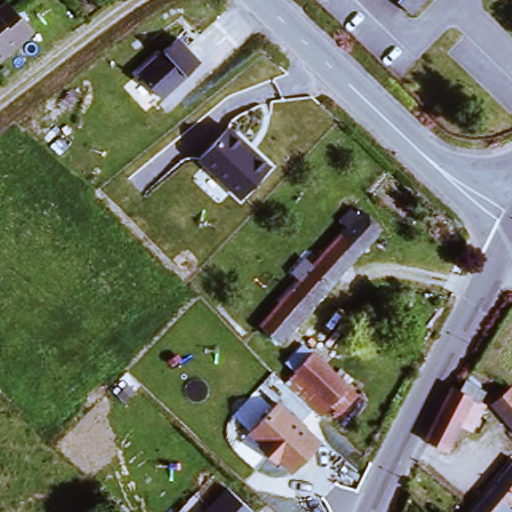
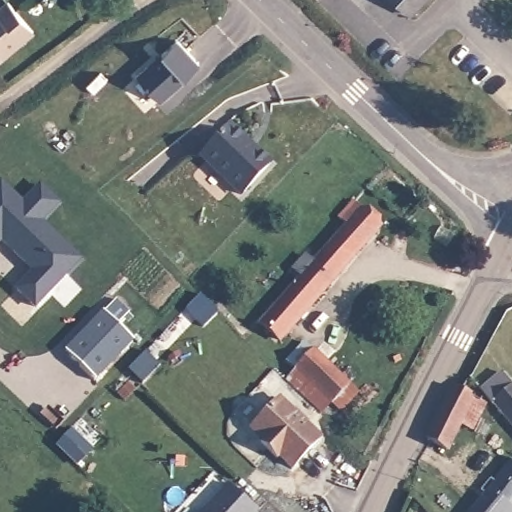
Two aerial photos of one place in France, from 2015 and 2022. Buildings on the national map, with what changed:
unchanged [(407,8),(398,0),(414,0),(407,8)]
unchanged [(35,31),(0,58),(0,11),(12,1),(35,31)]
unchanged [(137,71),(180,30),(204,57),(162,100),(137,71)]
unchanged [(232,130),(271,165),(239,201),(199,161),(232,130)]
new [(22,191),(40,173),(58,191),(40,209),(79,247),(34,293),(15,275),(33,258),(33,250),(28,245),(24,249),(1,225),(0,227),(0,170),(1,170),(22,191)]
unchanged [(355,203),(382,226),(280,338),(264,323),(307,275),(298,267),(309,255),(315,263),(349,226),(341,219),(355,203)]
new [(105,295),(134,323),(95,363),(65,335),(105,295)]
unchanged [(284,360),(302,341),(352,393),(334,411),(284,360)]
unchanged [(469,431),(458,425),(451,441),(430,431),(460,376),(479,387),(470,405),(480,410),(469,431)]
unchanged [(490,405),(502,390),(512,399),(512,424),(490,405)]
unchanged [(288,471),(275,460),(271,461),(257,446),(259,444),(247,432),(275,403),(315,442),(288,471)]
unchanged [(508,505),(512,509),(512,512),(464,512),(512,466),(512,501),(508,505)]
unchanged [(259,512),(207,512),(231,485),(260,511),(259,512)]

